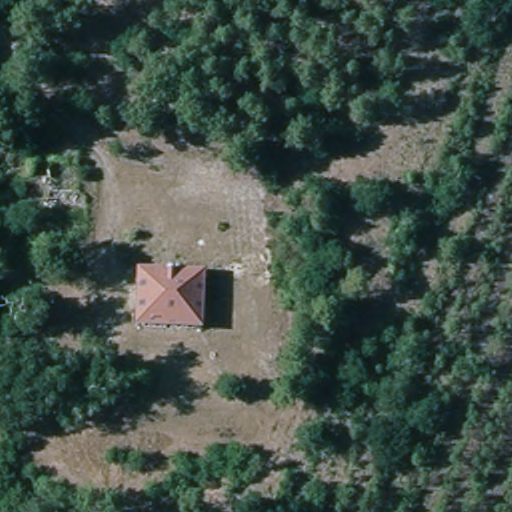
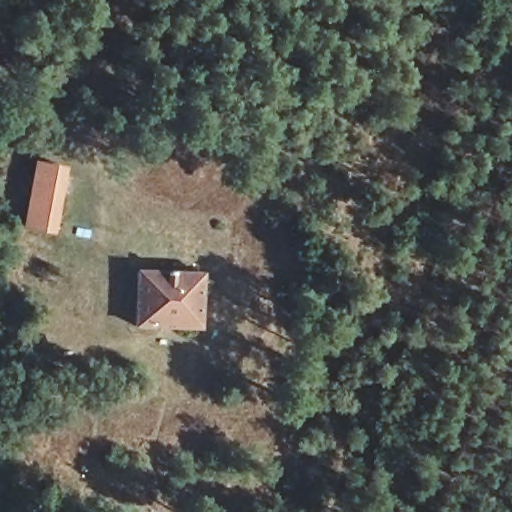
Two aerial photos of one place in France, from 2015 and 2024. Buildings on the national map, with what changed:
new [(67,166),(57,234),(25,229),(37,160),(67,166)]
unchanged [(135,276),(199,274),(203,328),(137,332),(135,276)]

